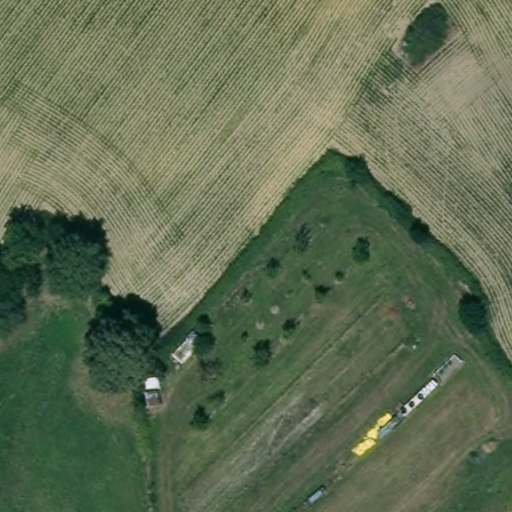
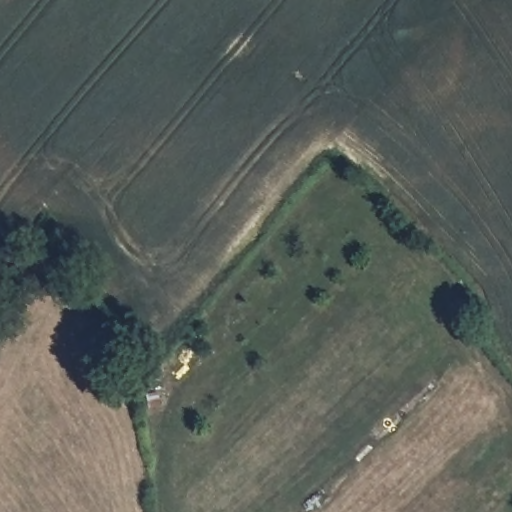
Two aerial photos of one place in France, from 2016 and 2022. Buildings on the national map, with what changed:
[]

